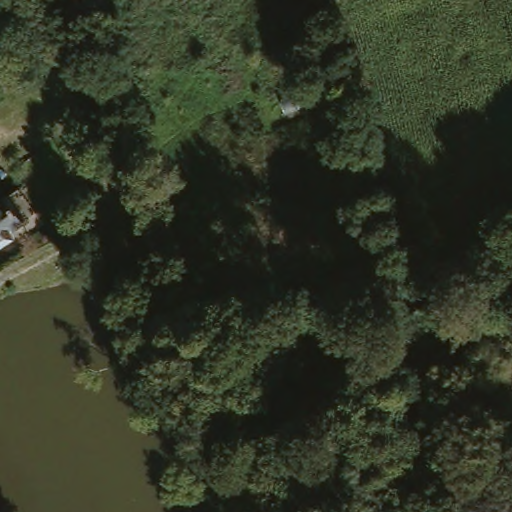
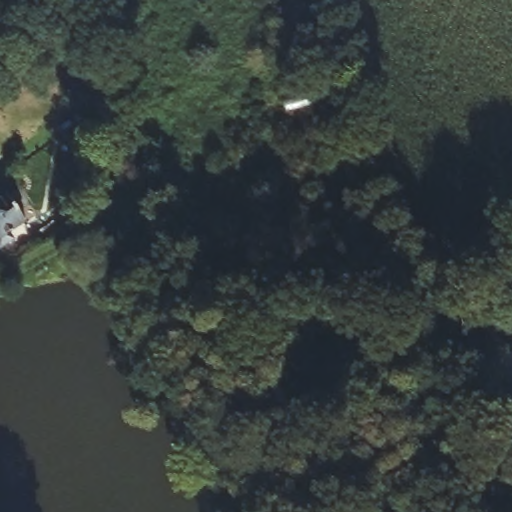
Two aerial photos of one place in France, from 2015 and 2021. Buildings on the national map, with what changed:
unchanged [(0,235),(0,199),(18,186),(27,186),(41,207),(0,235)]

